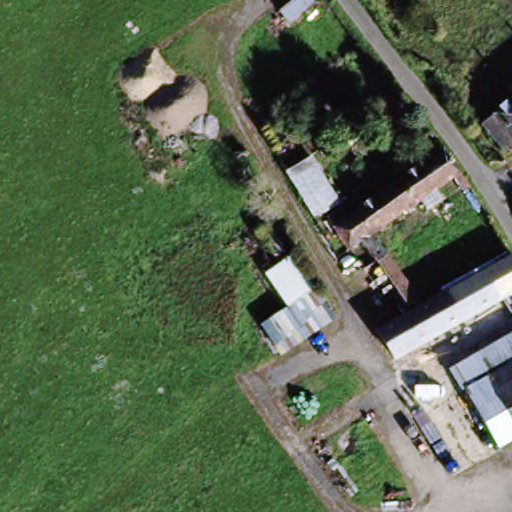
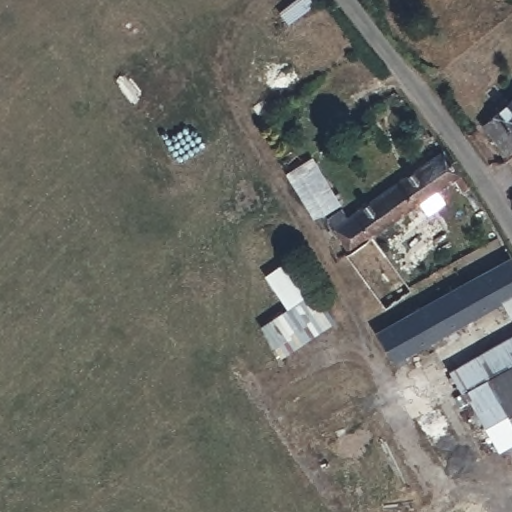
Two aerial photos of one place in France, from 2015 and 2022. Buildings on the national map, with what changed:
unchanged [(312,0),(318,0),(326,11),(302,28),(292,15),(312,0)]
unchanged [(508,159),(483,128),(512,103),(512,155),(508,159)]
unchanged [(423,201),(375,235),(363,244),(359,247),(351,252),(329,222),(343,212),(349,219),(444,151),(469,187),(463,192),(454,179),(436,192),(443,202),(431,212),(423,201)]
unchanged [(335,194),(341,202),(323,215),(316,216),(313,219),(283,177),(293,170),(306,161),(332,197),(335,194)]
unchanged [(503,298),(397,361),(381,334),(412,316),(363,244),(375,235),(389,256),(378,262),(414,315),(426,308),(512,258),(512,314),(503,298)]
unchanged [(296,257),(319,291),(296,307),(273,274),(296,257)]
unchanged [(339,319),(291,354),(271,325),(296,307),(319,291),(339,319)]
unchanged [(512,368),(512,444),(501,451),(468,395),(512,368)]

